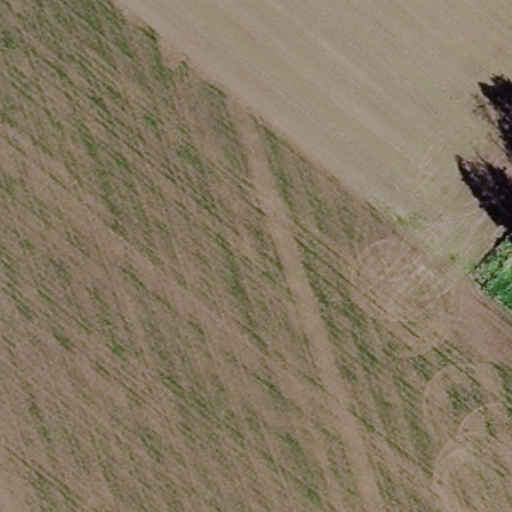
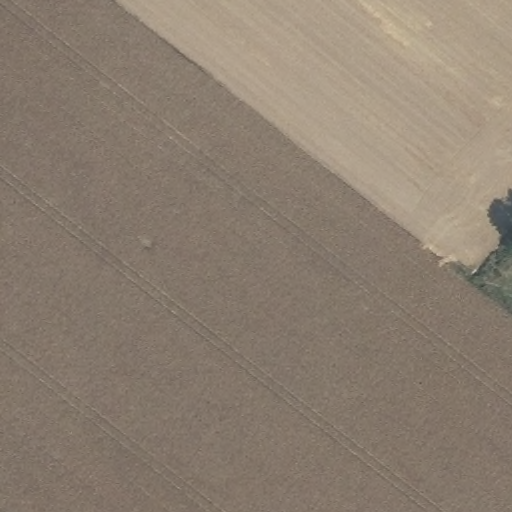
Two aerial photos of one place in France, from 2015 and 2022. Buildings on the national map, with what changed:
[]

